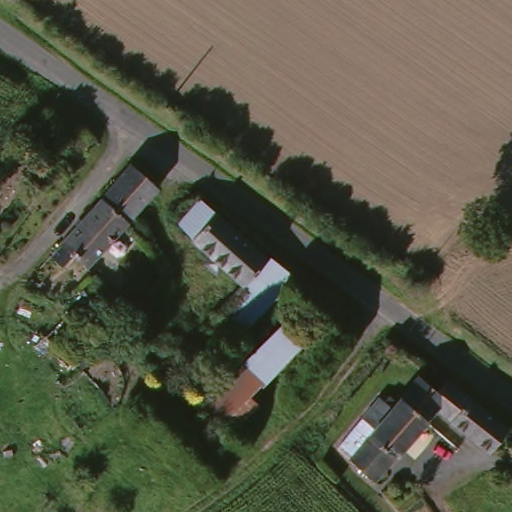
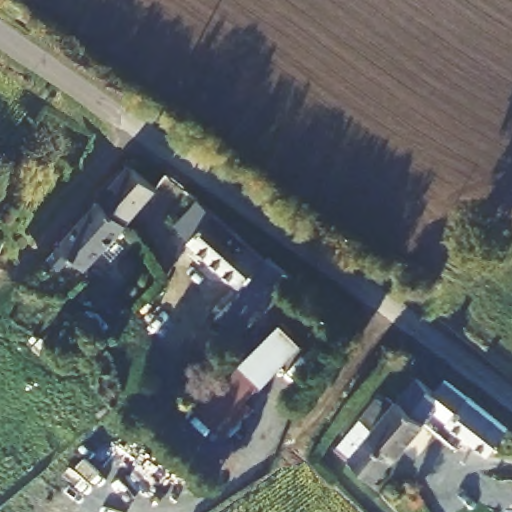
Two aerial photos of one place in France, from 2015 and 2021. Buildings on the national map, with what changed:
unchanged [(165,187),(131,220),(107,197),(140,162),(165,187)]
unchanged [(131,220),(92,263),(91,262),(66,242),(107,197),(131,220)]
unchanged [(202,199),(273,257),(274,256),(300,279),(285,297),(251,333),(241,327),(226,311),(236,299),(251,282),(231,265),(224,272),(211,262),(217,254),(180,222),(202,199)]
unchanged [(119,337),(87,365),(83,358),(74,367),(59,349),(60,348),(64,344),(84,327),(98,315),(119,337)]
unchanged [(293,324),(319,355),(232,431),(205,401),(293,324)]
unchanged [(512,438),(494,458),(441,411),(436,419),(408,395),(427,375),(445,387),(452,379),(512,431),(512,438)]
unchanged [(360,417),(367,408),(368,407),(375,413),(389,397),(398,406),(408,395),(436,419),(395,465),(383,478),(356,454),(346,446),(365,422),(360,417)]

